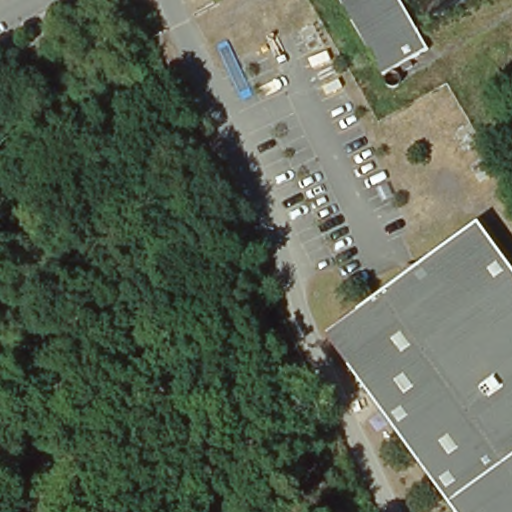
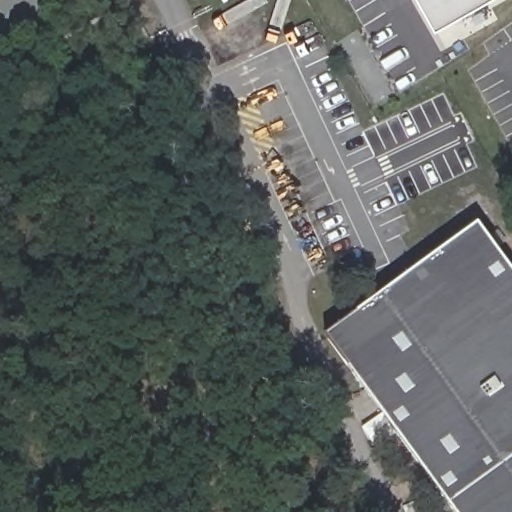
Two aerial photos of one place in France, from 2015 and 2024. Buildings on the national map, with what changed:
demolished [(382,81),(370,58),(373,56),(340,0),(389,0),(409,35),(415,31),(428,55),(382,81)]
new [(413,0),(480,0),(429,29),(413,0)]
unchanged [(512,259),(512,512),(454,512),(327,331),(485,221),(512,259)]

